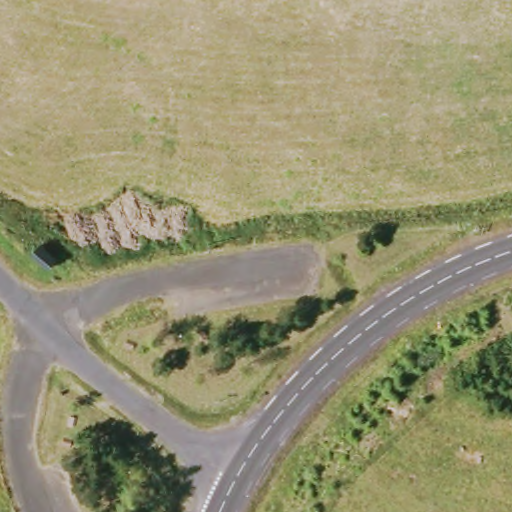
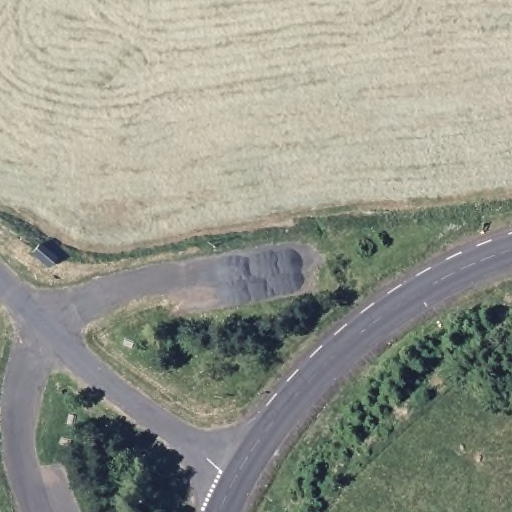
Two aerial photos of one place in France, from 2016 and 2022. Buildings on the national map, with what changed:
unchanged [(57,267),(45,277),(32,261),(42,250),(57,267)]

